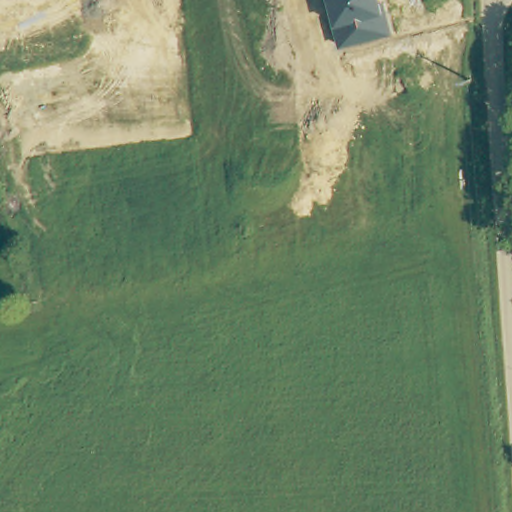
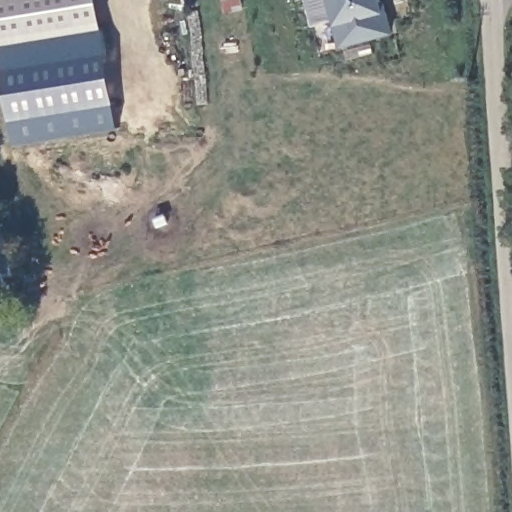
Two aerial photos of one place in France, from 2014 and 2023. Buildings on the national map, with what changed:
new [(0,46),(0,0),(99,0),(104,29),(0,46)]
unchanged [(386,3),(395,35),(340,49),(335,30),(327,0),(380,0),(381,4),(386,3)]
new [(15,148),(0,53),(0,46),(104,29),(121,129),(15,148)]

